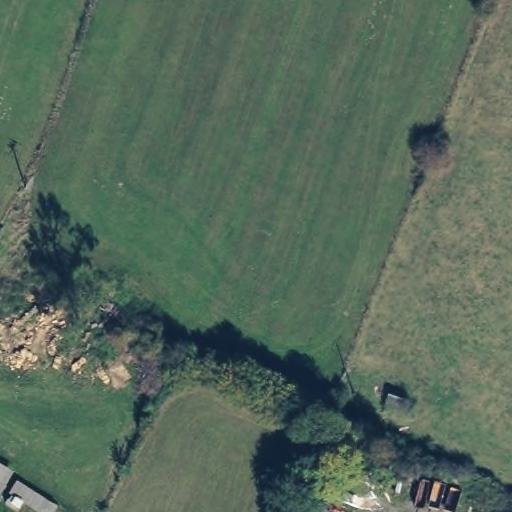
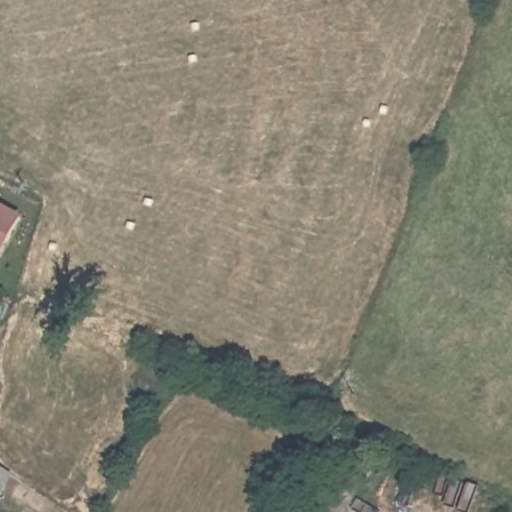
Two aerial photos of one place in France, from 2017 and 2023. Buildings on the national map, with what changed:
new [(0,256),(0,202),(22,214),(0,256)]
unchanged [(12,481),(57,507),(54,512),(34,512),(5,495),(1,500),(0,500),(0,465),(17,474),(12,481)]

